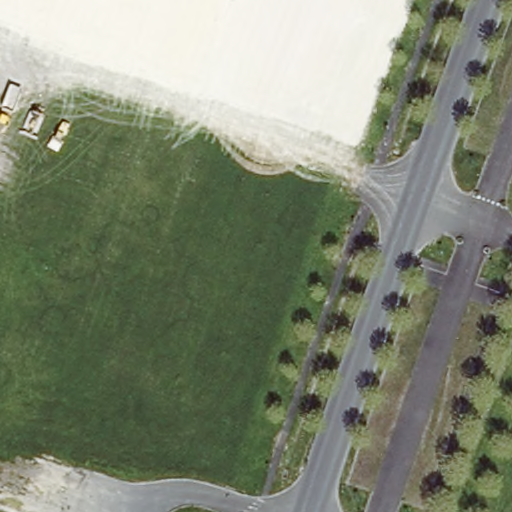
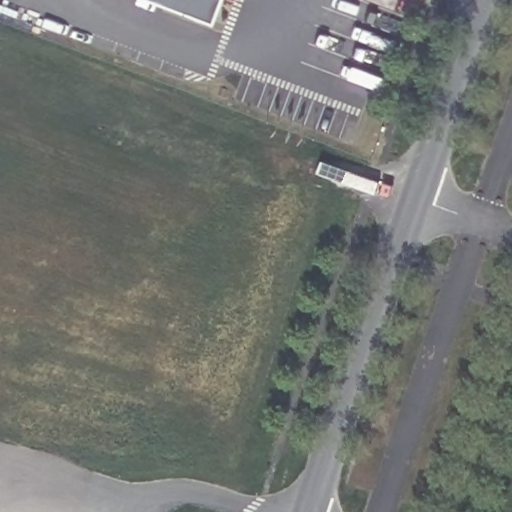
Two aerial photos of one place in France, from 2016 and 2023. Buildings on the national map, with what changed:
new [(157,0),(223,0),(215,21),(157,0)]
new [(233,0),(236,0),(236,1),(233,0)]

